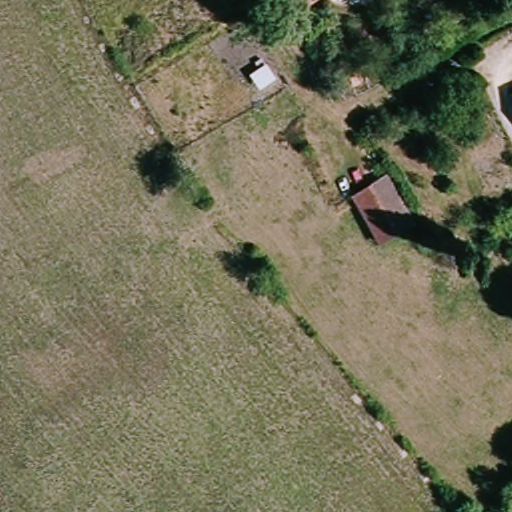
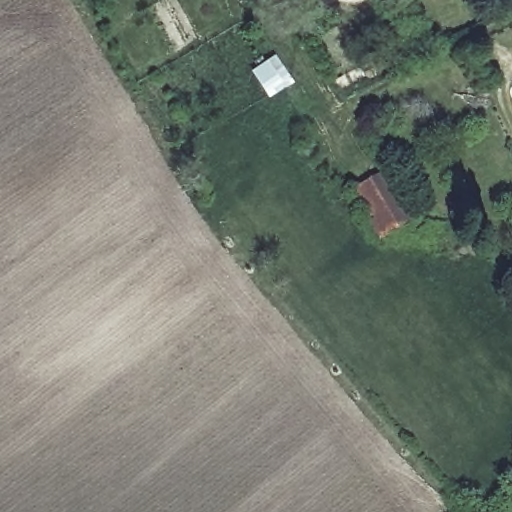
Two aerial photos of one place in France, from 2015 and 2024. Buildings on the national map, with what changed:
unchanged [(380,240),(352,191),(388,170),(416,220),(380,240)]

